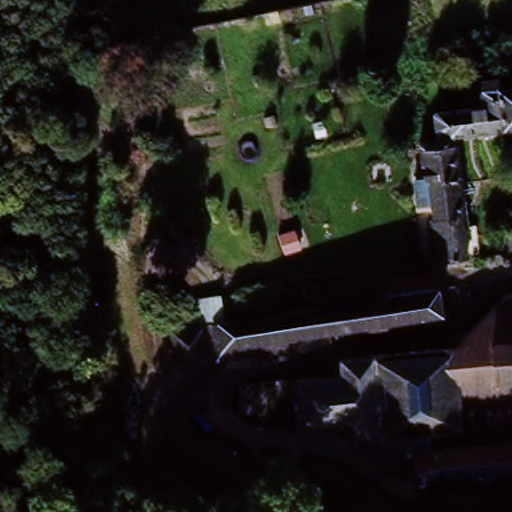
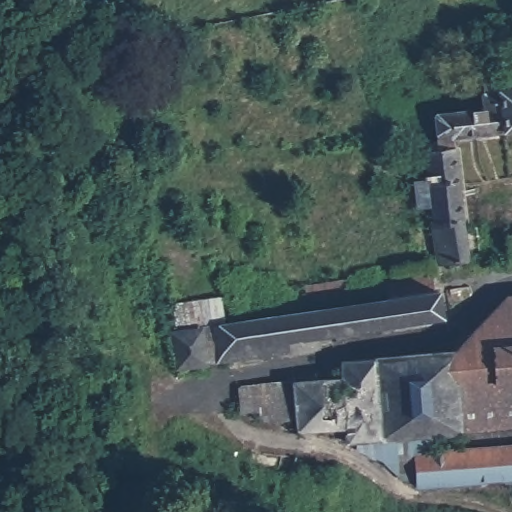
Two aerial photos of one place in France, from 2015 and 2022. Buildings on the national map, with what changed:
unchanged [(438,119),(474,112),(488,110),(483,82),(502,79),(504,98),(510,136),(478,141),(457,145),(455,137),(442,140),(438,119)]
unchanged [(512,97),(512,135),(510,136),(504,98),(512,97)]
unchanged [(425,171),(422,152),(443,149),(445,156),(455,154),(472,263),(441,268),(435,226),(440,226),(437,212),(423,214),(419,186),(433,184),(430,170),(425,171)]
unchanged [(506,235),(512,234),(512,250),(509,251),(506,235)]
unchanged [(295,278),(343,271),(346,287),(298,294),(295,278)]
unchanged [(252,370),(227,375),(225,367),(175,376),(170,340),(215,332),(388,306),(385,292),(430,283),(433,297),(437,297),(442,326),(320,346),(322,360),(288,365),(287,360),(252,367),(252,370)]
unchanged [(273,314),(243,321),(239,302),(269,296),(273,314)]
unchanged [(446,355),(501,299),(512,298),(512,483),(415,490),(413,485),(412,460),(410,442),(378,445),(345,447),(344,428),(342,400),(340,381),(338,366),(446,355)]
unchanged [(170,336),(160,337),(159,330),(169,327),(170,336)]
unchanged [(257,420),(238,421),(236,397),(235,391),(287,387),(340,381),(342,400),(344,428),(292,433),(291,427),(257,430),(257,420)]
unchanged [(378,445),(410,442),(412,460),(413,485),(405,485),(381,465),(380,462),(378,445)]
unchanged [(245,469),(247,451),(292,457),(290,476),(245,469)]
unchanged [(301,482),(303,465),(333,469),(331,486),(301,482)]

